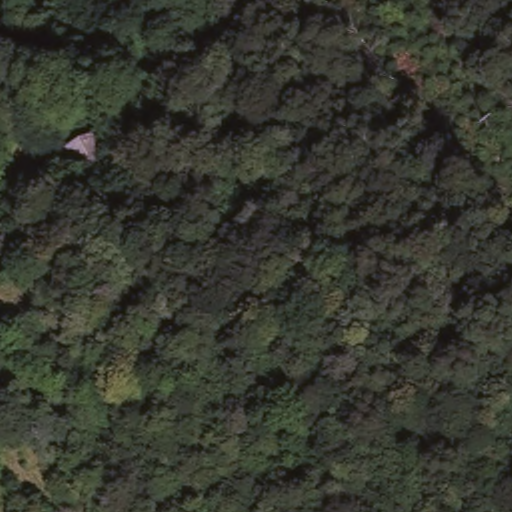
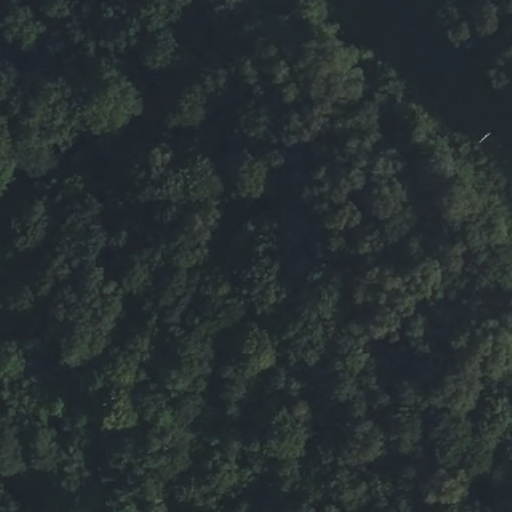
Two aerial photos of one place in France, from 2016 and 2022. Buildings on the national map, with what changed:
unchanged [(115,162),(80,181),(67,157),(85,148),(102,139),(115,162)]

